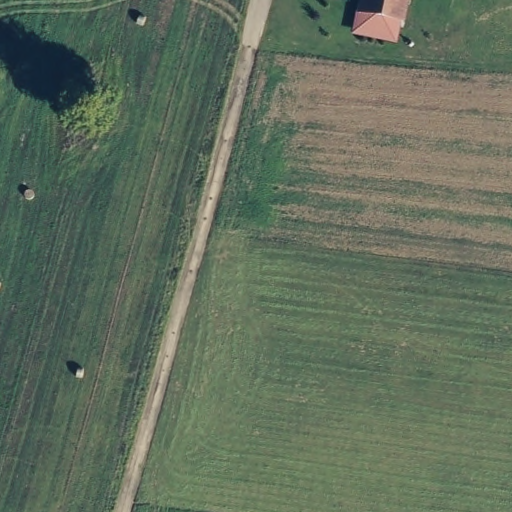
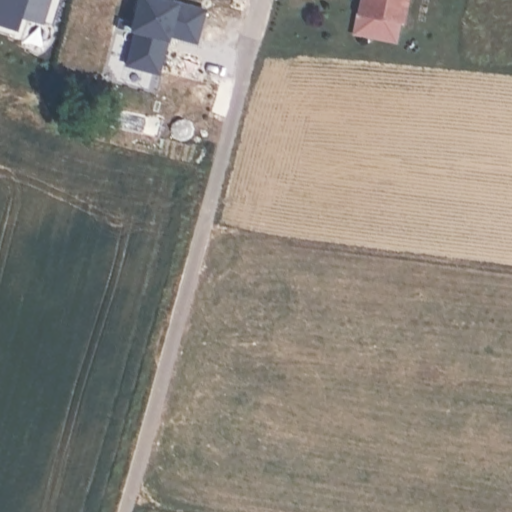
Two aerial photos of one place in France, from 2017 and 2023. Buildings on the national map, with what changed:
new [(20,17),(16,30),(0,24),(0,0),(51,0),(43,23),(20,17)]
new [(135,30),(130,29),(138,0),(182,0),(207,8),(197,42),(170,36),(168,40),(160,74),(125,66),(135,30)]
new [(359,0),(409,0),(405,22),(401,22),(397,42),(352,32),(359,0)]
demolished [(361,11),(363,0),(396,0),(393,15),(361,11)]

